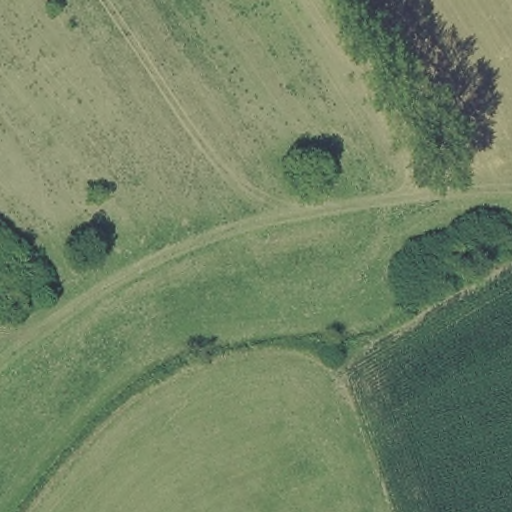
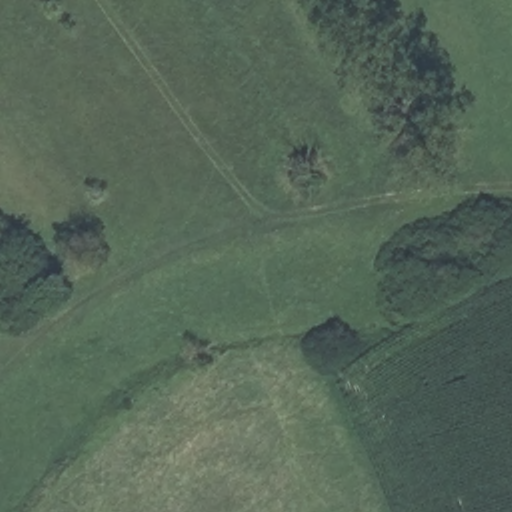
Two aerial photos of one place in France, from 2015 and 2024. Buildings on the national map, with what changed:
[]

